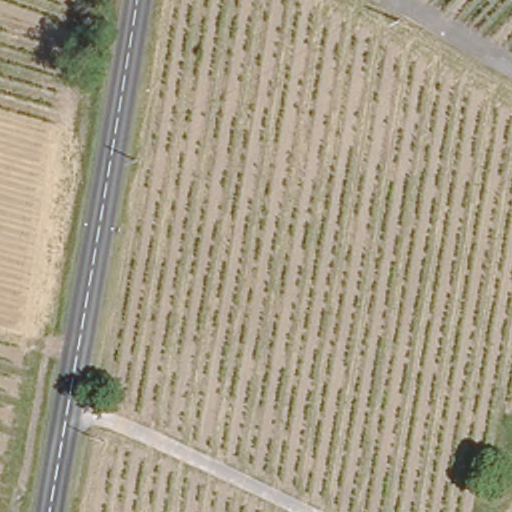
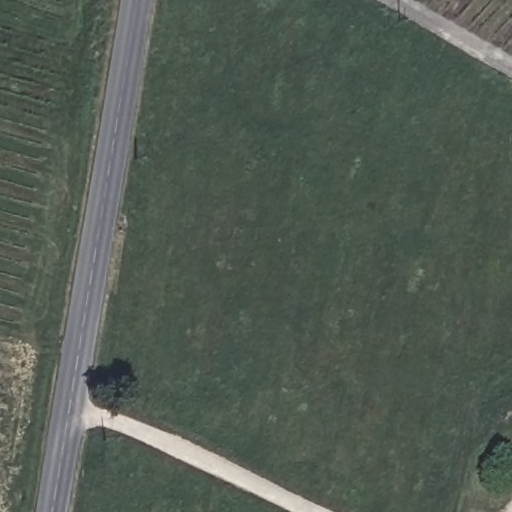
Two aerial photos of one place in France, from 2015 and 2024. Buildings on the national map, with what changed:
[]

